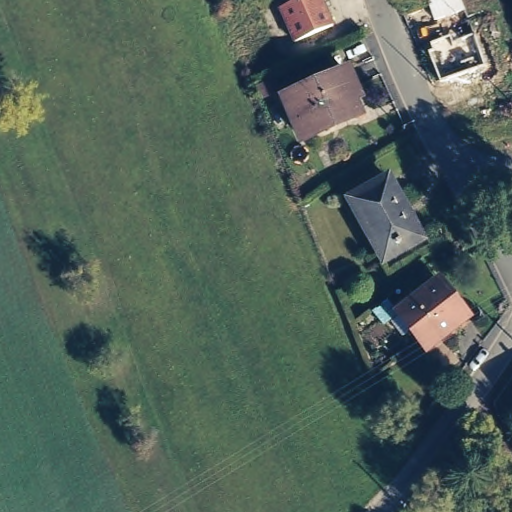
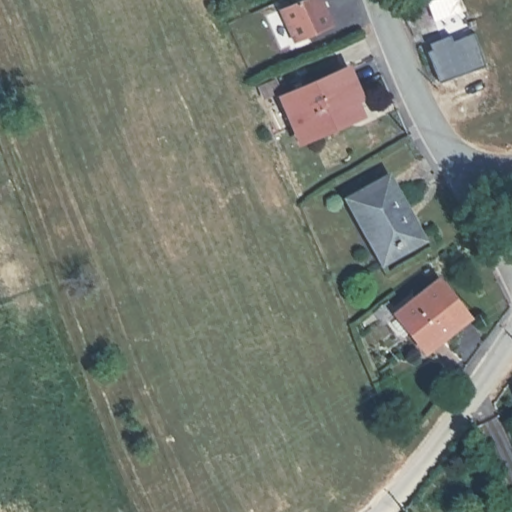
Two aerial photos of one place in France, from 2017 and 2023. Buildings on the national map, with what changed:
unchanged [(279,9),(299,0),(324,0),(334,24),(294,42),(279,9)]
unchanged [(462,0),(465,10),(434,20),(428,2),(433,0),(462,0)]
unchanged [(446,42),(448,47),(469,39),(480,69),(436,87),(423,57),(427,55),(425,51),(446,42)]
unchanged [(365,116),(303,144),(285,102),(346,75),(365,116)]
unchanged [(274,85),(279,95),(264,102),(259,91),(274,85)]
unchanged [(345,209),(384,187),(418,249),(399,258),(379,270),(376,265),(345,209)]
unchanged [(397,323),(399,322),(394,317),(411,302),(416,308),(439,291),(468,327),(426,360),(410,339),(402,345),(392,332),(399,326),(397,323)]

